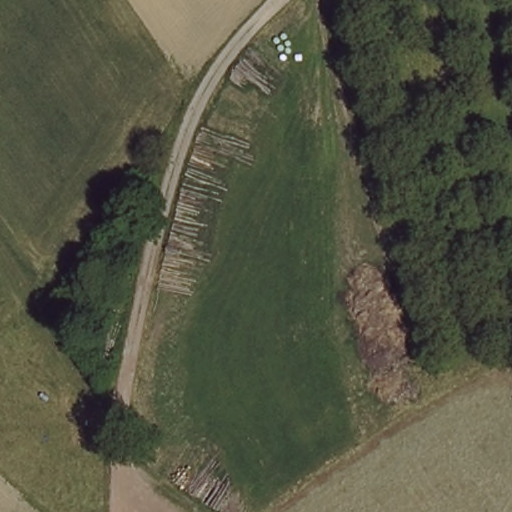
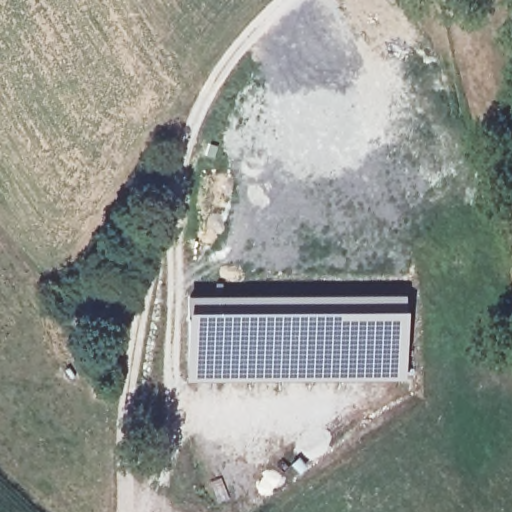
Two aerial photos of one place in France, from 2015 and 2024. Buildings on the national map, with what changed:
new [(185,295),(405,293),(406,381),(232,382),(184,381),(185,295)]

